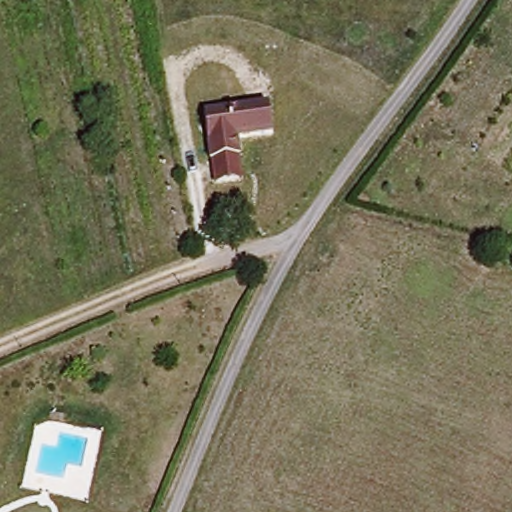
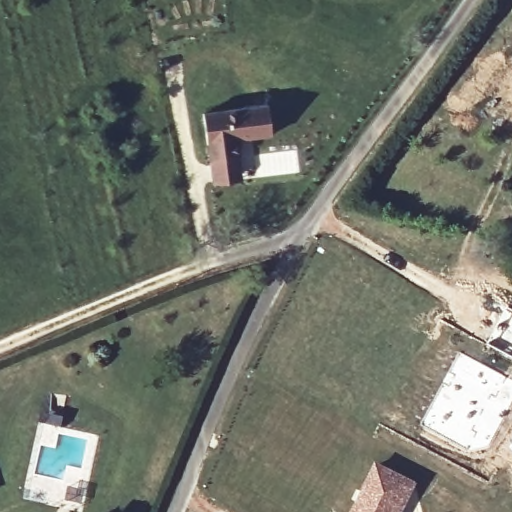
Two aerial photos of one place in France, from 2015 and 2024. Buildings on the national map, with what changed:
unchanged [(267,100),(274,145),(241,150),(244,181),(213,186),(203,110),(267,100)]
new [(512,378),(512,400),(485,451),(472,451),(419,423),(459,350),(512,378)]
new [(419,482),(404,512),(349,512),(376,461),(419,482)]

